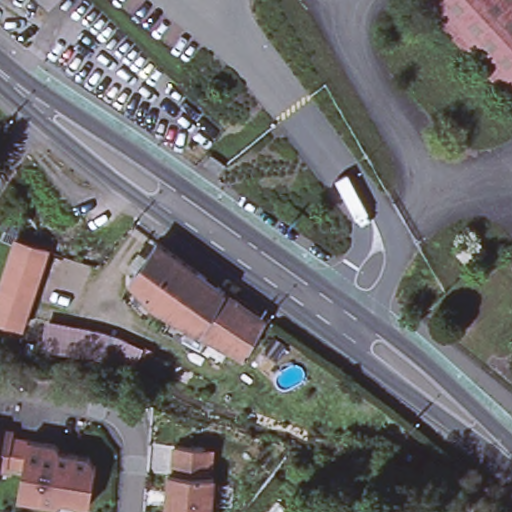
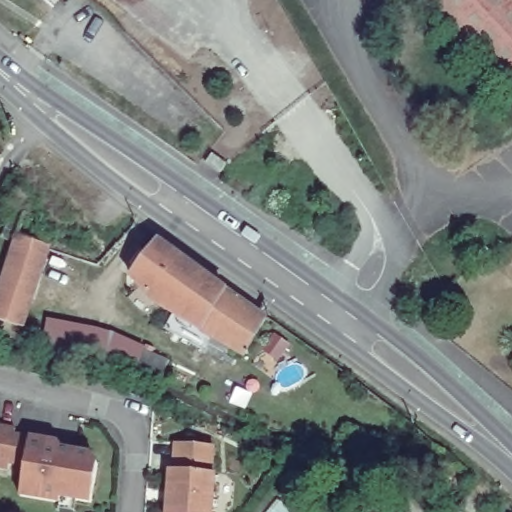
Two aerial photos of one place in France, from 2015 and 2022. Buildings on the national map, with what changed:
unchanged [(44,0),(53,0),(49,5),(44,0)]
unchanged [(456,39),(420,0),(477,0),(492,11),(456,39)]
unchanged [(492,11),(477,0),(512,0),(512,26),(492,11)]
unchanged [(512,26),(512,99),(456,39),(492,11),(512,26)]
unchanged [(223,173),(209,161),(216,152),(230,165),(223,173)]
unchanged [(20,220),(30,223),(45,255),(22,331),(0,325),(0,287),(12,245),(20,220)]
unchanged [(465,252),(479,239),(481,238),(489,247),(493,251),(476,265),(465,252)]
unchanged [(167,329),(175,314),(159,305),(134,279),(142,269),(135,263),(142,253),(149,259),(161,242),(207,274),(228,289),(270,318),(247,355),(231,346),(224,359),(206,349),(167,329)]
unchanged [(86,350),(67,347),(45,343),(51,317),(72,322),(72,320),(92,325),(115,331),(129,337),(167,356),(159,373),(120,359),(106,354),(86,350)]
unchanged [(511,348),(512,347),(512,350),(511,348)]
unchanged [(11,454),(10,464),(9,466),(8,470),(0,469),(0,427),(15,430),(14,436),(11,454)]
unchanged [(57,444),(61,449),(61,450),(91,456),(98,466),(91,504),(61,499),(60,504),(20,496),(25,467),(10,464),(11,454),(14,436),(57,444)]
unchanged [(206,479),(209,479),(206,512),(163,512),(166,477),(170,477),(172,448),(198,450),(207,461),(206,479)]

